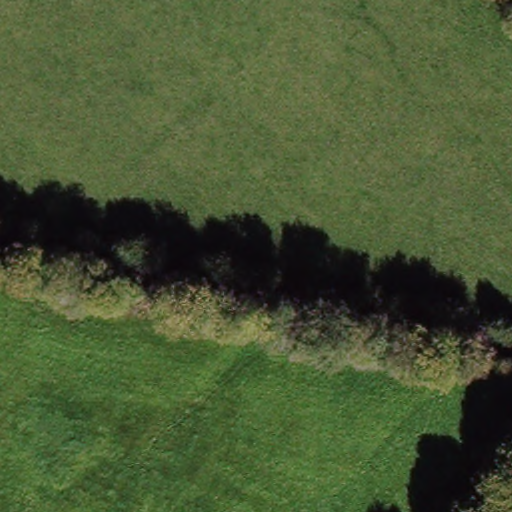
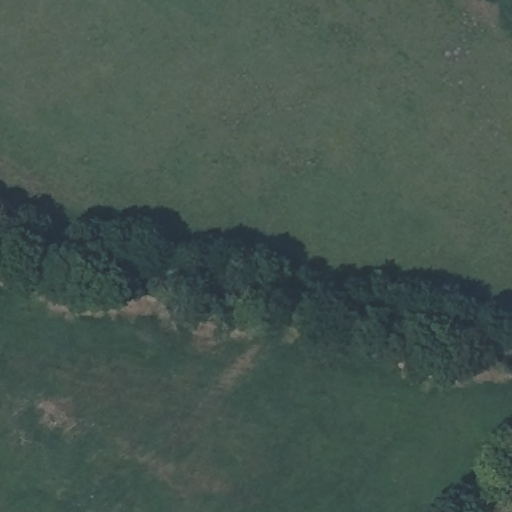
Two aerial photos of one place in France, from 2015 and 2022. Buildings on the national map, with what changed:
[]

